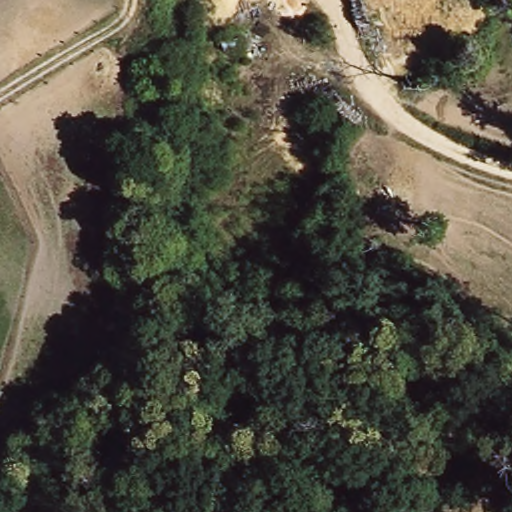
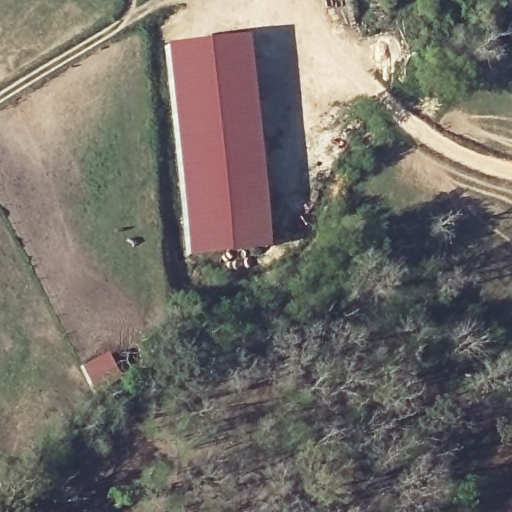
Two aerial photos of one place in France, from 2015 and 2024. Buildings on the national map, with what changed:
new [(247,37),(271,246),(186,256),(164,46),(247,37)]
new [(105,355),(117,380),(95,392),(81,366),(105,355)]

